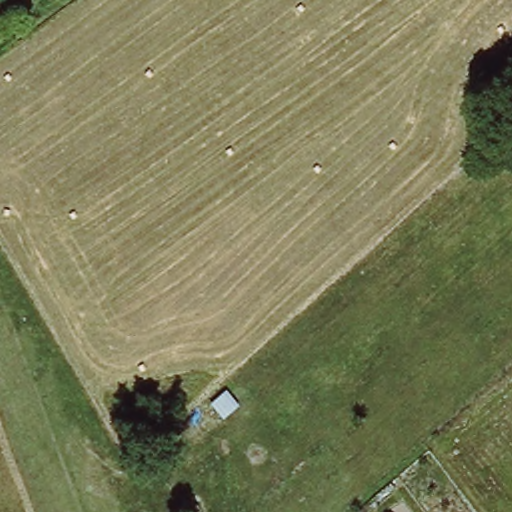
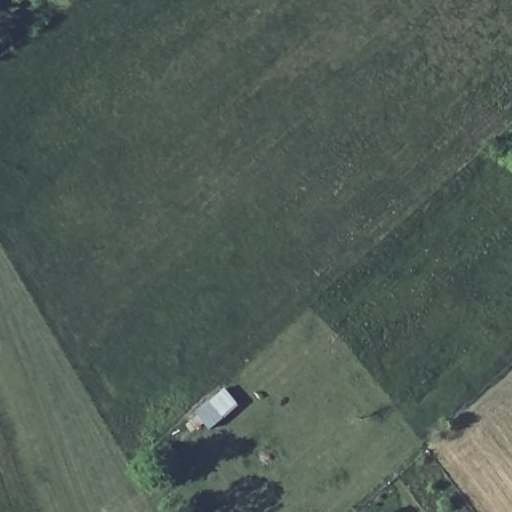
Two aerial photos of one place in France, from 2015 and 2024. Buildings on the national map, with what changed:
[]

